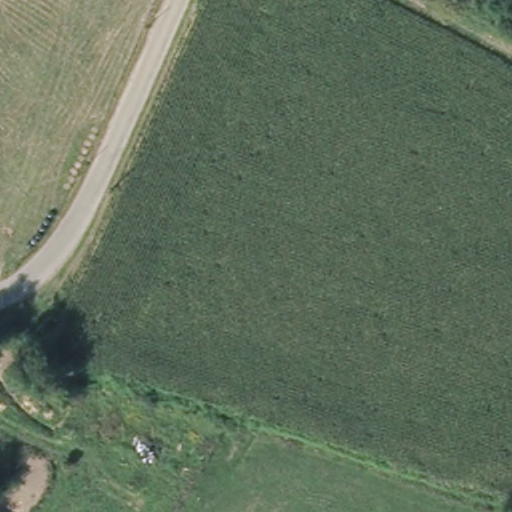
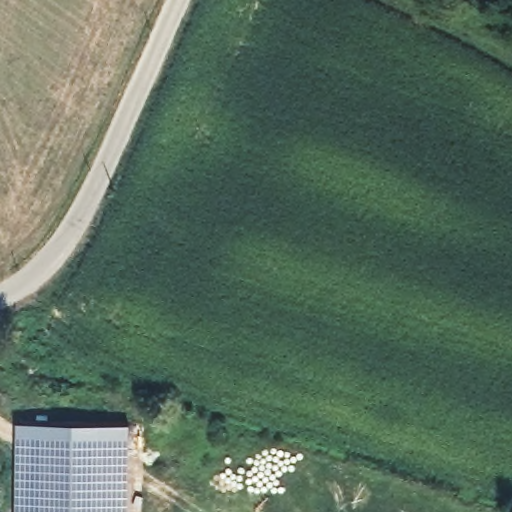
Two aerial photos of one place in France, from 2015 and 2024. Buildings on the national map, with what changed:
new [(129,512),(19,512),(21,426),(131,428),(129,512)]

